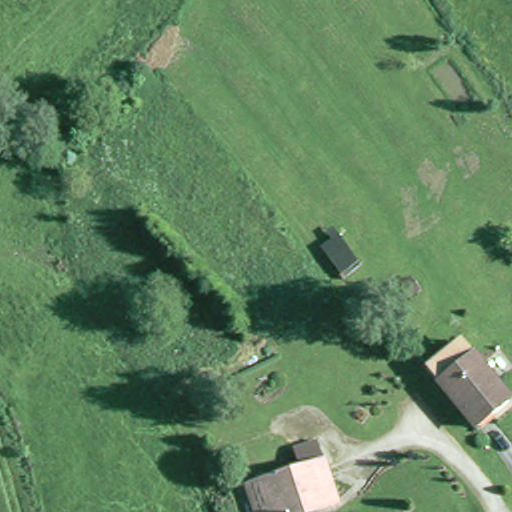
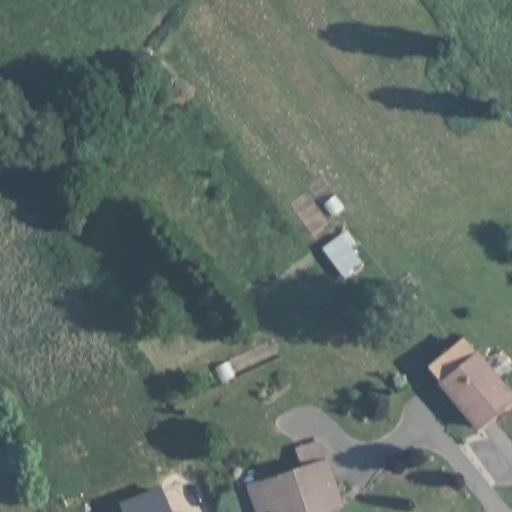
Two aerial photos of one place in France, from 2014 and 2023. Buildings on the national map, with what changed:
unchanged [(466,350),(512,404),(512,409),(483,433),(433,378),(466,350)]
unchanged [(311,512),(257,512),(250,490),(302,473),(294,450),(318,442),(325,465),(337,503),(311,512)]
new [(121,505),(159,490),(167,512),(124,512),(121,505)]

